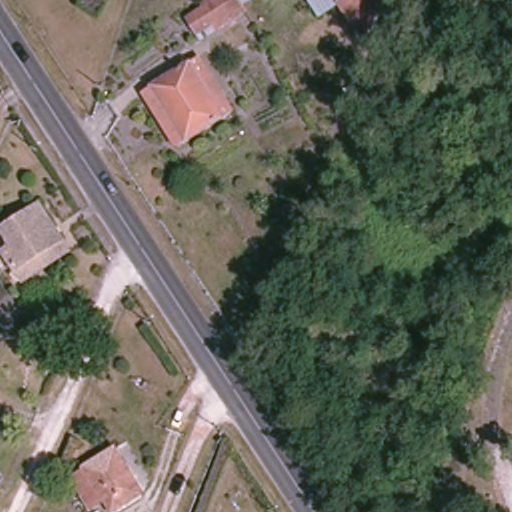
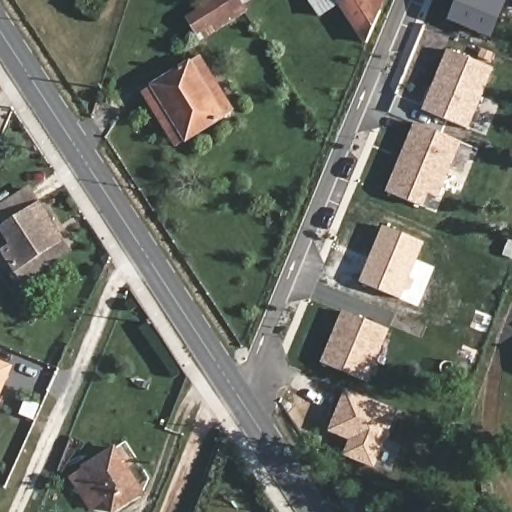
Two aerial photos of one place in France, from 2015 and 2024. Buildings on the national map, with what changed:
unchanged [(201,34),(191,17),(219,0),(244,0),(247,4),(201,34)]
unchanged [(379,12),(369,44),(365,46),(339,4),(325,11),(317,0),(373,0),(379,12)]
new [(492,40),(448,22),(457,0),(508,0),(492,40)]
new [(469,129),(422,111),(448,50),(494,70),(469,129)]
unchanged [(146,96),(198,65),(228,116),(175,147),(146,96)]
new [(439,199),(429,195),(424,207),(387,192),(415,123),(462,142),(439,199)]
unchanged [(32,269),(22,276),(4,247),(14,242),(2,224),(38,201),(61,235),(69,246),(32,269)]
new [(382,227),(425,245),(402,301),(359,283),(382,227)]
new [(390,330),(367,382),(320,362),(343,311),(390,330)]
new [(0,396),(0,360),(13,366),(0,396)]
new [(348,441),(328,432),(346,390),(398,411),(374,470),(342,456),(348,441)]
unchanged [(96,512),(69,470),(99,449),(129,497),(108,512),(96,512)]

